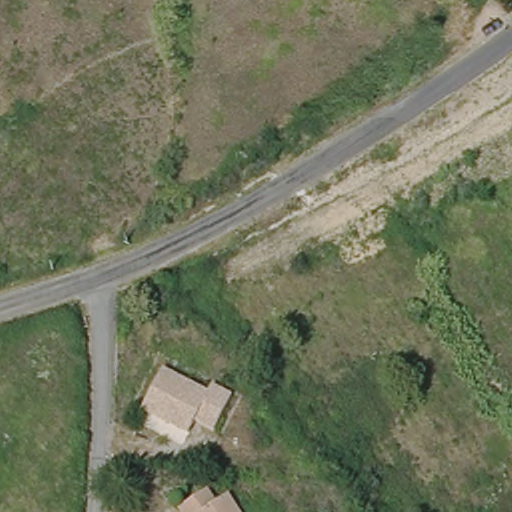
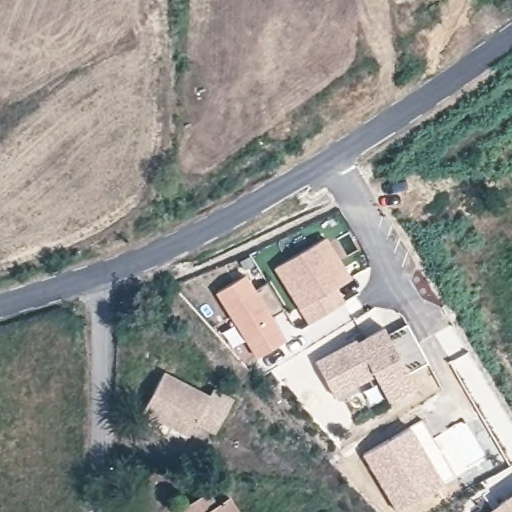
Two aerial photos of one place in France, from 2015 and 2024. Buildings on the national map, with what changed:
new [(325,238),(353,278),(337,288),(347,302),(310,325),(276,270),(325,238)]
new [(246,276),(257,291),(268,282),(284,308),(273,316),(287,339),(256,358),(215,295),(246,276)]
new [(355,338),(357,342),(383,325),(390,336),(407,325),(428,364),(409,376),(414,386),(386,401),(374,377),(335,397),(315,361),(355,338)]
unchanged [(211,384),(234,396),(217,428),(194,417),(187,428),(147,407),(165,370),(207,392),(211,384)]
new [(409,427),(421,419),(456,475),(442,483),(443,484),(396,512),(362,455),(409,427)]
unchanged [(249,512),(194,512),(187,503),(213,486),(223,500),(235,492),(249,512)]
new [(512,512),(486,512),(512,493),(512,512)]

